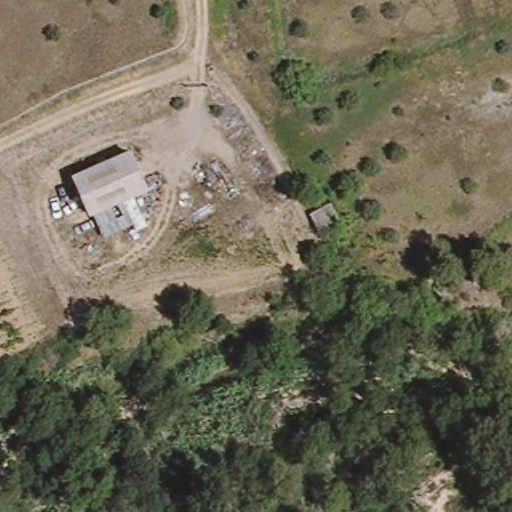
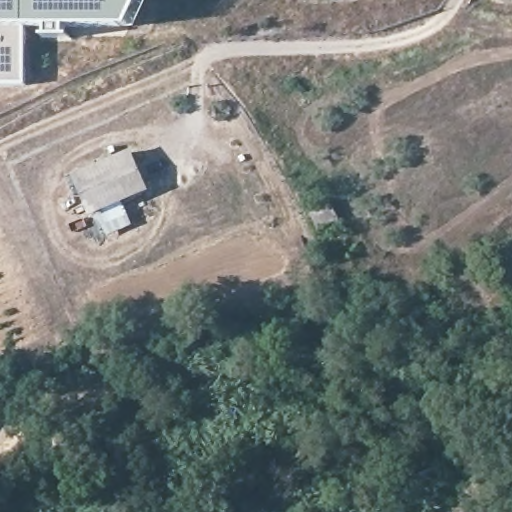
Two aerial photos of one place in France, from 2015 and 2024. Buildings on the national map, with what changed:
new [(0,0),(140,0),(127,26),(13,26),(25,84),(0,84),(0,0)]
unchanged [(131,155),(146,195),(90,218),(74,178),(131,155)]
unchanged [(306,220),(324,213),(331,229),(315,237),(306,220)]
unchanged [(245,343),(244,326),(261,323),(265,342),(245,343)]

